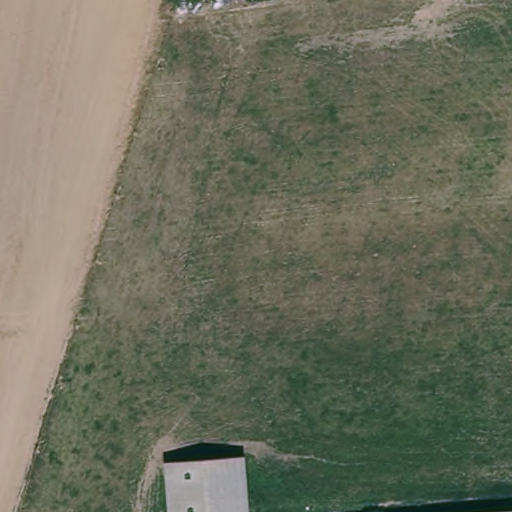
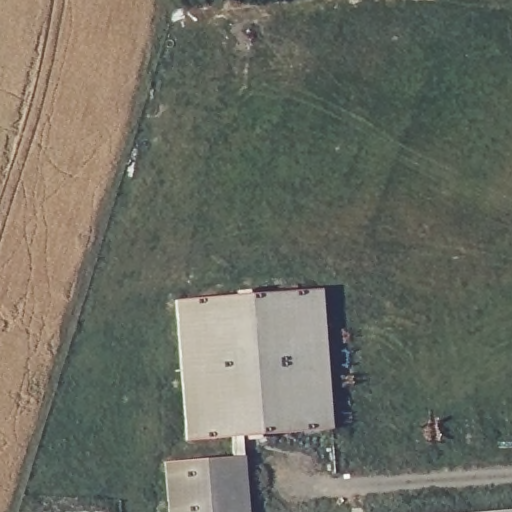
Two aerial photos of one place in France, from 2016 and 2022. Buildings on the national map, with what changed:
new [(329,290),(331,430),(185,432),(183,292),(329,290)]
unchanged [(240,455),(245,512),(164,512),(160,461),(240,455)]

